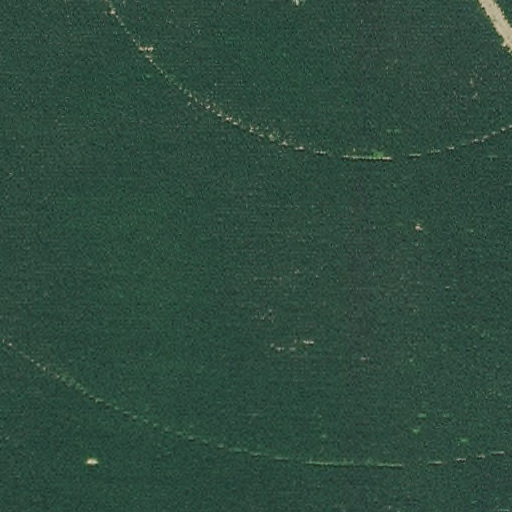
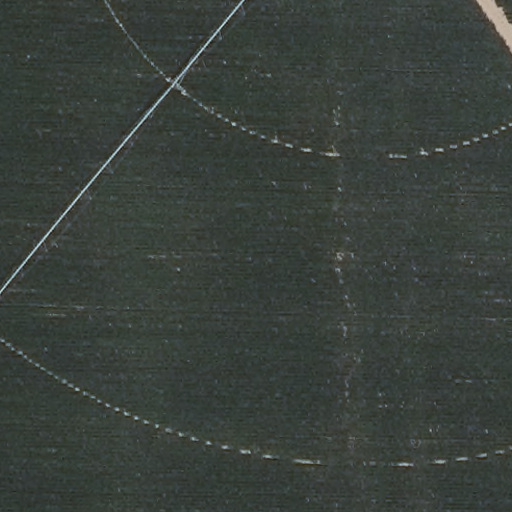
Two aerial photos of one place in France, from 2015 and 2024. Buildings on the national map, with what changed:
[]

